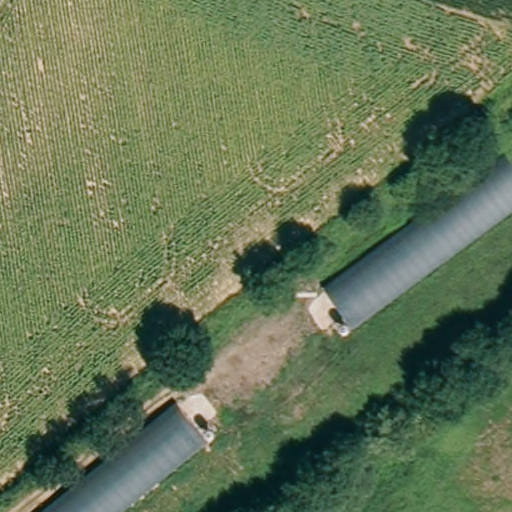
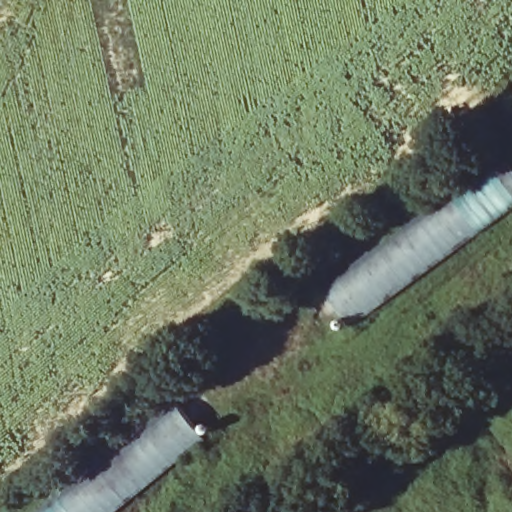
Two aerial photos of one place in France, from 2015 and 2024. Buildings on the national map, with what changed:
unchanged [(338,335),(311,293),(510,145),(512,148),(512,206),(338,335)]
unchanged [(113,512),(35,512),(172,404),(203,442),(113,512)]

